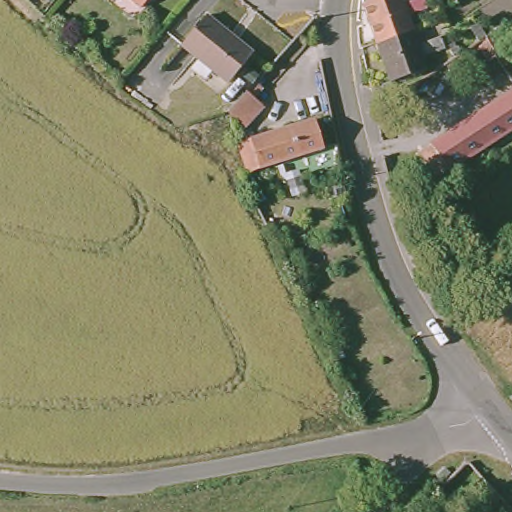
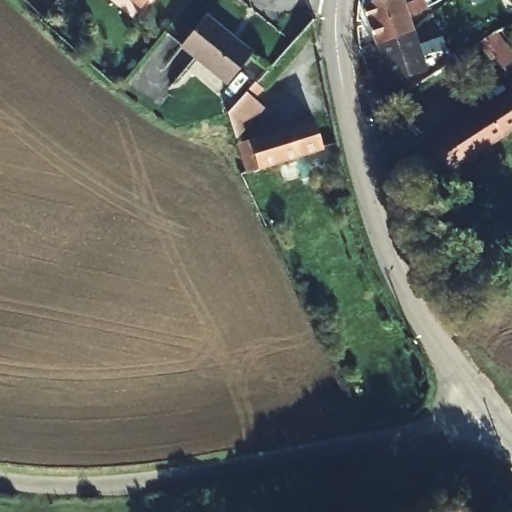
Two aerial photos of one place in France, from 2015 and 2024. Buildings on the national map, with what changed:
unchanged [(135,0),(142,0),(139,3),(135,0)]
unchanged [(400,0),(402,5),(418,0),(422,0),(426,9),(406,16),(411,32),(374,44),(359,0),(400,0)]
unchanged [(180,48),(204,18),(251,56),(227,86),(180,48)]
unchanged [(503,34),(508,31),(512,39),(512,41),(504,46),(512,61),(512,69),(511,69),(512,71),(512,75),(508,78),(488,44),(496,39),(503,34)]
unchanged [(387,85),(374,44),(411,32),(416,48),(438,40),(442,52),(419,59),(424,73),(390,84),(393,93),(373,104),(369,91),(387,85)]
unchanged [(265,89),(256,99),(264,108),(238,136),(231,110),(257,82),(265,89)]
unchanged [(512,89),(512,124),(493,137),(446,169),(429,143),(512,89)]
unchanged [(249,174),(241,144),(314,121),(323,150),(249,174)]

